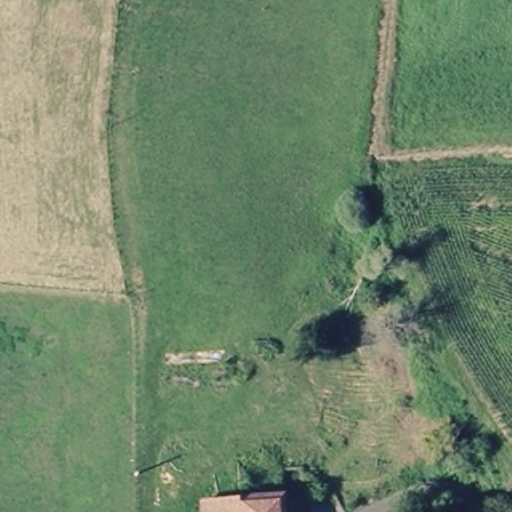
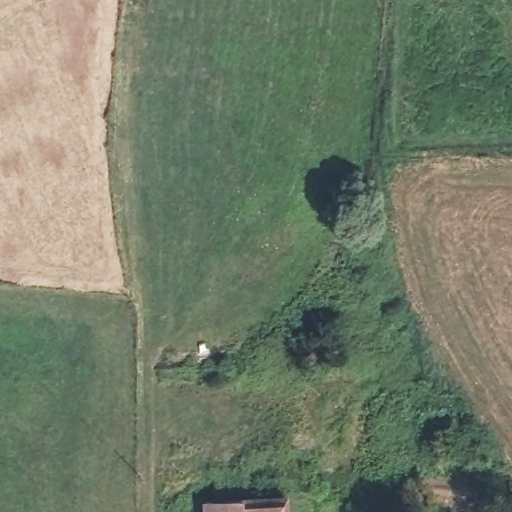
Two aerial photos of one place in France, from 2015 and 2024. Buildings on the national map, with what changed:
unchanged [(254,494),(254,479),(285,479),(286,512),(206,512),(205,497),(254,494)]

